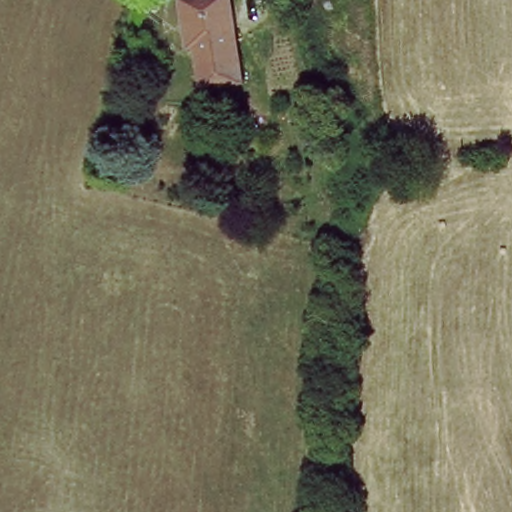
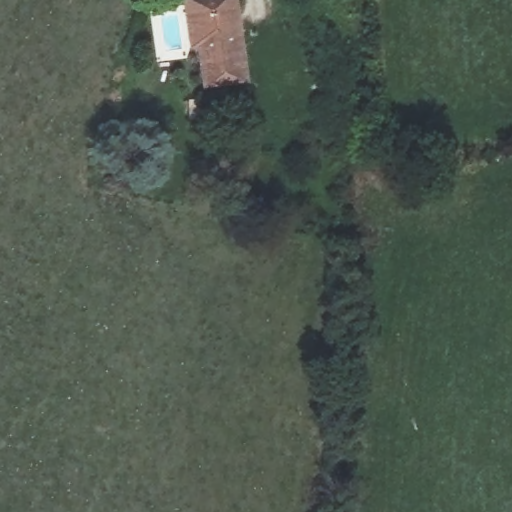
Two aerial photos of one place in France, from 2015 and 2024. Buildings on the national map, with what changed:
unchanged [(189,0),(236,0),(246,79),(207,82),(202,34),(194,35),(189,0)]

